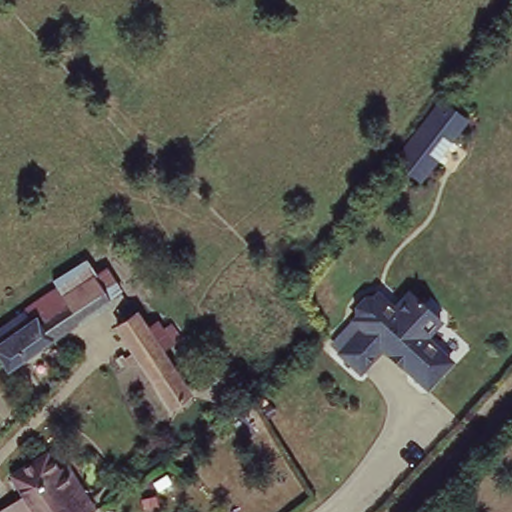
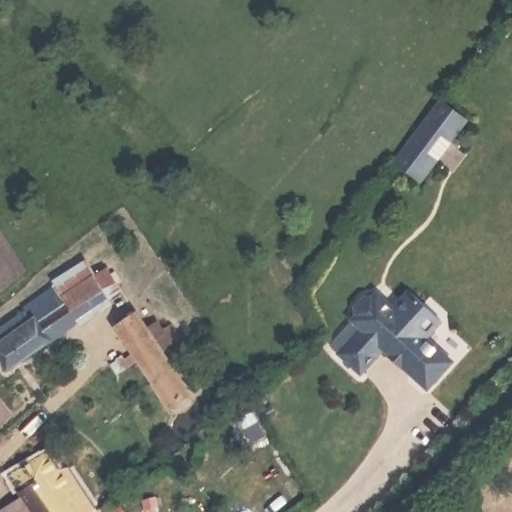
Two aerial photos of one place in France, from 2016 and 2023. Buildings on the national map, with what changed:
unchanged [(467,121),(419,183),(391,161),(437,100),(467,121)]
unchanged [(113,263),(128,290),(116,300),(119,305),(10,373),(0,358),(0,324),(58,284),(54,276),(91,255),(100,271),(113,263)]
unchanged [(396,355),(399,352),(391,345),(369,373),(345,351),(367,327),(359,318),(363,312),(359,308),(355,297),(369,298),(376,303),(383,294),(398,309),(416,291),(448,319),(434,337),(458,359),(436,384),(408,360),(405,364),(396,355)]
unchanged [(199,395),(172,412),(115,325),(143,308),(154,324),(164,315),(170,325),(178,319),(172,349),(199,395)]
unchanged [(11,477),(48,449),(64,472),(71,472),(96,509),(90,512),(37,512),(11,477)]
unchanged [(19,504),(26,512),(10,512),(19,504)]

